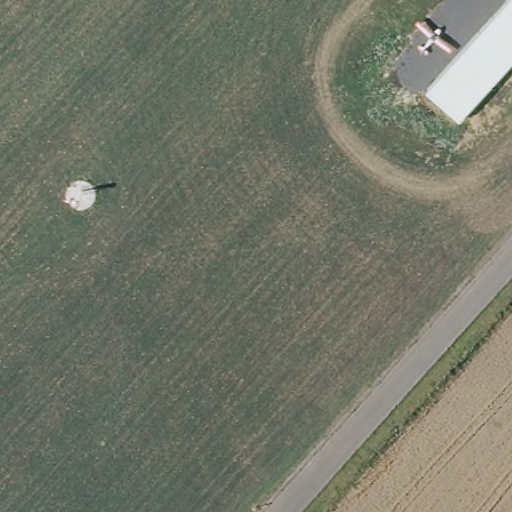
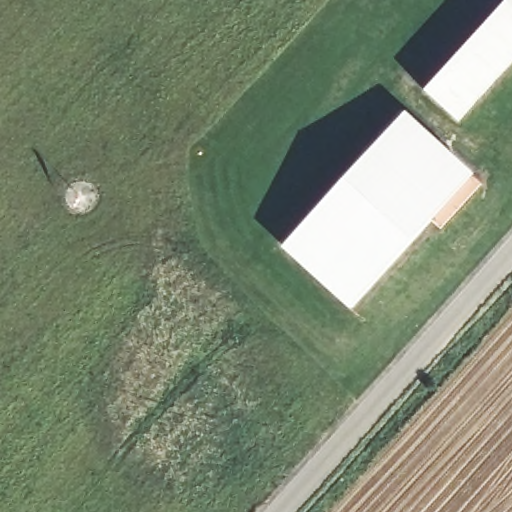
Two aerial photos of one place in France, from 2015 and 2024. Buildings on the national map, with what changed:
unchanged [(423,99),(510,0),(512,0),(512,63),(452,130),(423,99)]
new [(474,176),(352,310),(283,247),(405,113),(474,176)]

